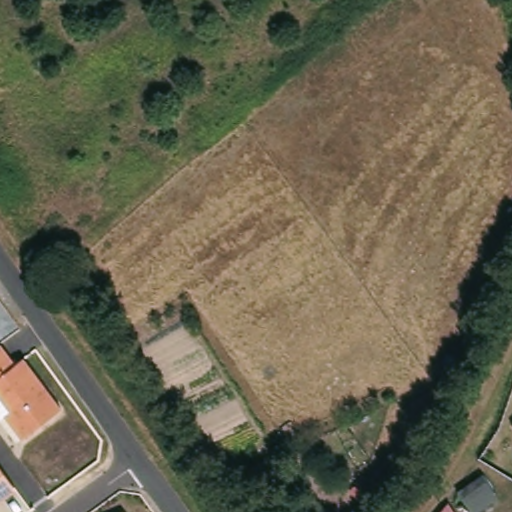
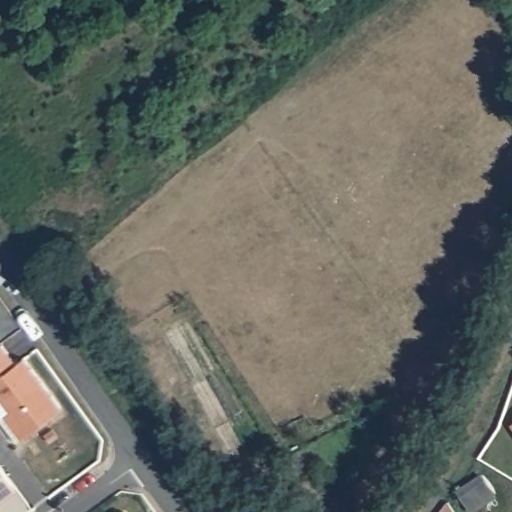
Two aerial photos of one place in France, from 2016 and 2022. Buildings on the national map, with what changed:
unchanged [(5,413),(0,407),(0,343),(5,339),(20,359),(27,353),(65,403),(26,433),(21,436),(5,413)]
unchanged [(0,492),(0,469),(11,484),(0,492)]

